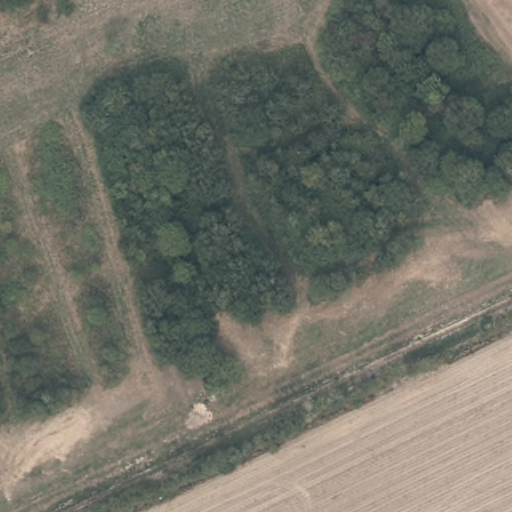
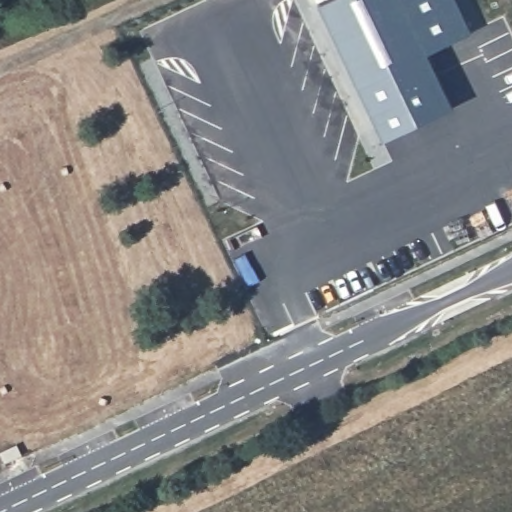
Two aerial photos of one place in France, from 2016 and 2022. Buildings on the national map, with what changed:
new [(457,0),(472,31),(428,52),(453,106),(384,139),(319,4),(326,0),(457,0)]

